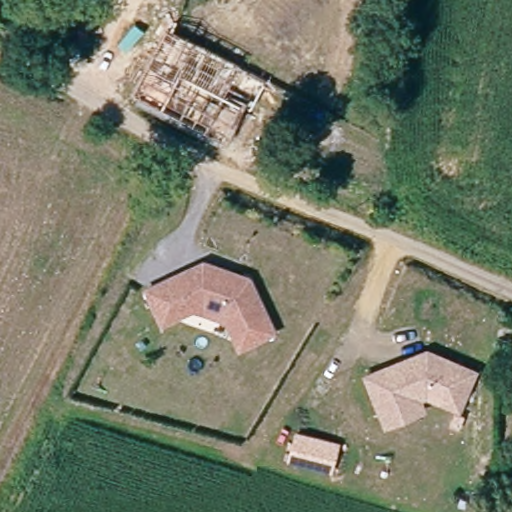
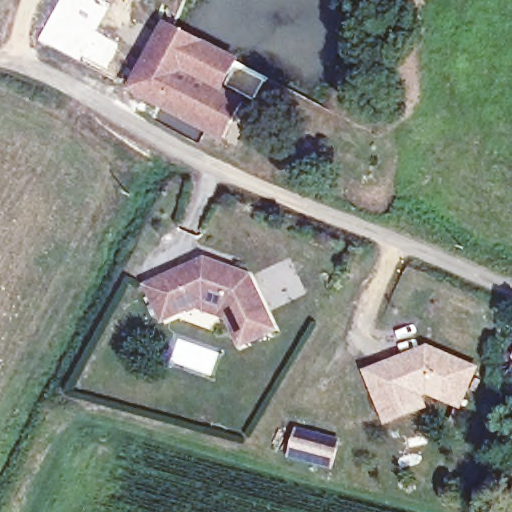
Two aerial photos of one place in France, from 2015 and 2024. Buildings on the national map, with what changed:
unchanged [(82,50),(61,45),(67,16),(87,21),(82,50)]
new [(225,141),(126,90),(165,20),(241,60),(225,90),(246,100),(225,141)]
demolished [(224,144),(200,131),(169,115),(136,97),(145,79),(127,70),(132,60),(139,64),(176,84),(182,74),(197,82),(214,92),(242,107),(224,144)]
unchanged [(165,320),(150,285),(207,260),(226,266),(228,270),(234,272),(238,270),(252,275),(277,329),(242,345),(230,317),(197,305),(165,320)]
unchanged [(387,422),(383,410),(368,372),(417,354),(426,357),(430,348),(477,370),(461,407),(428,393),(422,396),(426,407),(387,422)]
new [(288,458),(297,427),(342,438),(332,470),(288,458)]

